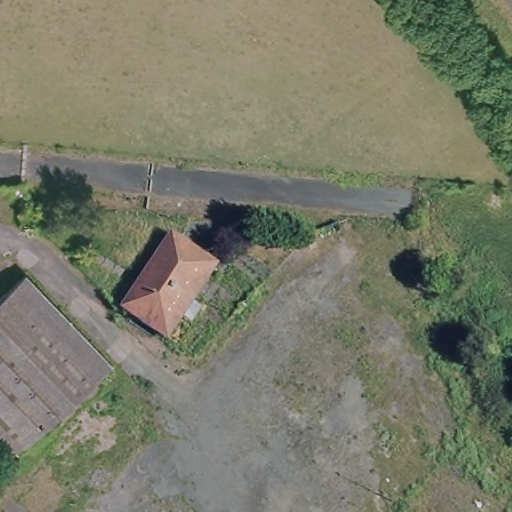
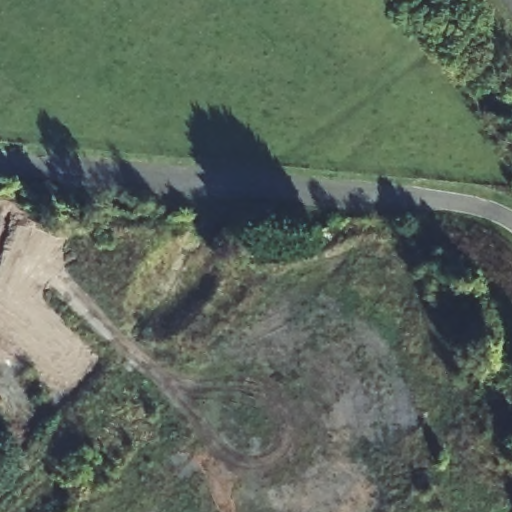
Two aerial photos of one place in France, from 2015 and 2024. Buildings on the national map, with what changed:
demolished [(175,327),(161,342),(116,302),(180,237),(221,275),(175,327)]
demolished [(21,270),(56,305),(110,362),(18,451),(0,433),(0,290),(10,280),(21,270)]

